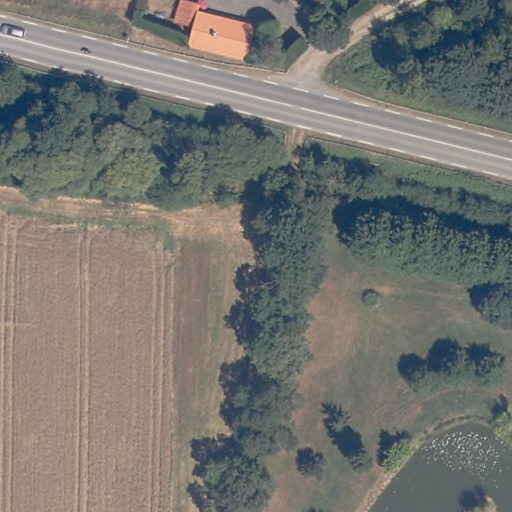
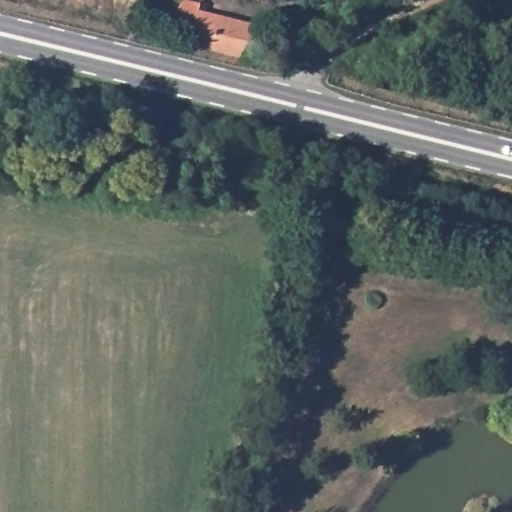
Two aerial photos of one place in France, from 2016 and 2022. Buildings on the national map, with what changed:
unchanged [(165,14),(172,0),(187,0),(176,17),(165,14)]
unchanged [(204,37),(190,33),(196,7),(264,23),(257,56),(202,42),(204,37)]

